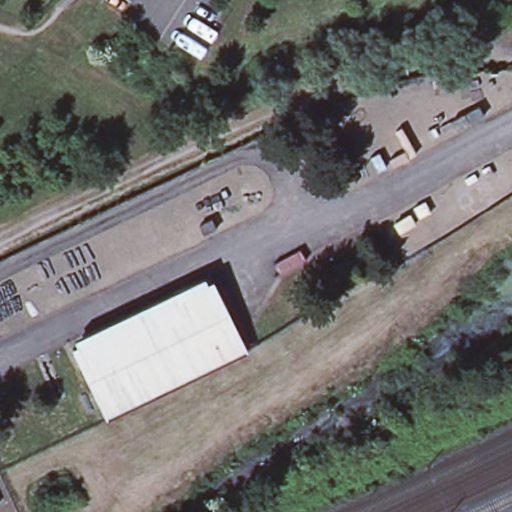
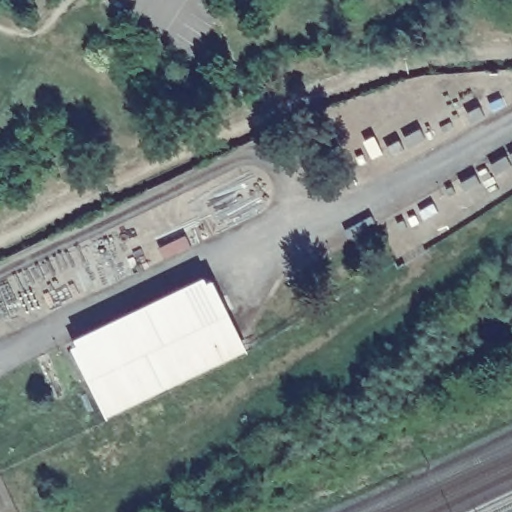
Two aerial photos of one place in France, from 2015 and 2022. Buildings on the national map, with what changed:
unchanged [(74,343),(205,279),(239,349),(108,413),(74,343)]
unchanged [(0,508),(0,501),(2,506),(0,508)]

